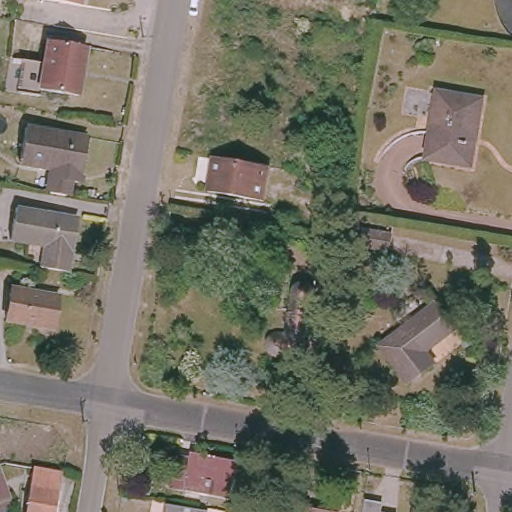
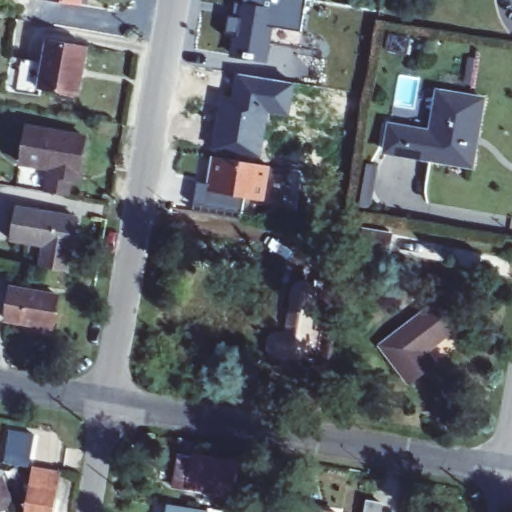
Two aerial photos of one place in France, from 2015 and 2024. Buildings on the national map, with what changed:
unchanged [(66,0),(87,0),(87,3),(66,0)]
new [(228,32),(220,27),(242,4),(243,0),(305,0),(300,32),(273,27),(267,63),(229,57),(228,32)]
unchanged [(48,37),(87,44),(78,92),(40,86),(48,37)]
new [(290,115),(268,112),(260,162),(211,154),(222,95),(232,97),(236,75),(295,85),(290,115)]
unchanged [(430,127),(435,91),(478,97),(472,134),(430,127)]
unchanged [(30,122),(89,132),(83,167),(82,175),(73,173),(70,188),(54,185),(57,163),(24,157),(30,122)]
unchanged [(472,134),(467,164),(425,157),(430,127),(472,134)]
unchanged [(259,198),(205,189),(211,154),(264,164),(259,198)]
new [(205,189),(245,196),(242,218),(193,210),(198,183),(206,184),(205,189)]
unchanged [(17,206),(77,217),(72,249),(68,270),(42,266),(45,245),(11,239),(17,206)]
unchanged [(398,233),(396,249),(367,244),(370,229),(398,233)]
unchanged [(304,273),(310,270),(315,271),(320,274),(321,279),(312,339),(308,343),(303,346),(282,342),(277,340),(274,336),(275,330),(278,325),(282,322),(288,321),(294,322),(301,277),(304,273)]
unchanged [(58,327),(12,320),(18,287),(64,295),(58,327)]
unchanged [(425,348),(434,362),(408,382),(379,342),(435,301),(455,326),(425,348)]
unchanged [(178,486),(183,455),(197,457),(198,456),(238,463),(233,496),(178,486)]
unchanged [(27,512),(28,506),(22,505),(24,493),(30,494),(34,467),(62,471),(55,512),(27,512)]
unchanged [(5,497),(0,499),(0,481),(5,497)]
unchanged [(279,502),(266,500),(268,489),(282,491),(279,502)]
unchanged [(380,507),(397,509),(396,512),(364,512),(367,495),(382,497),(380,507)]
unchanged [(337,507),(336,512),(303,512),(305,502),(337,507)]
unchanged [(170,512),(171,503),(210,510),(210,512),(170,512)]

